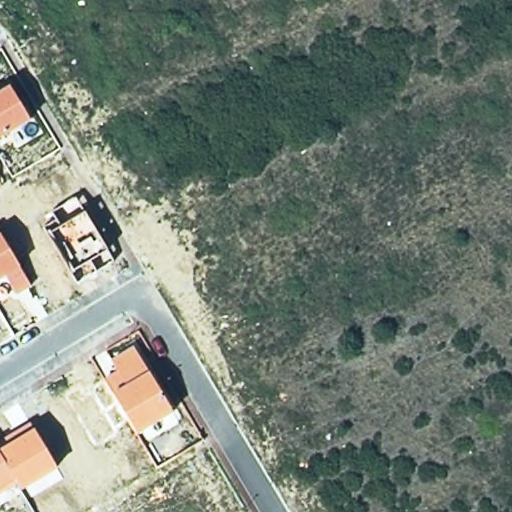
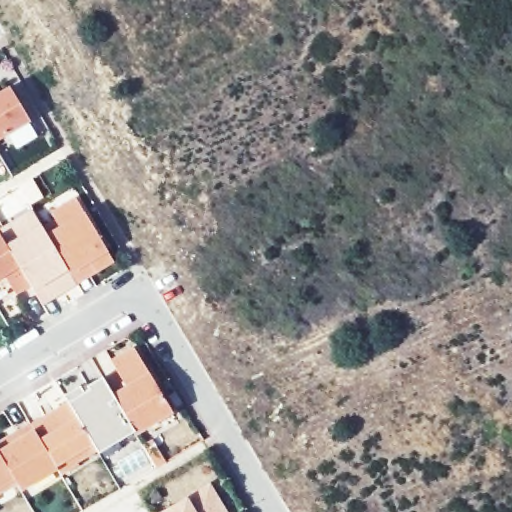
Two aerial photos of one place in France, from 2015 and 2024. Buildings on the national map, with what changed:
unchanged [(10,85),(30,122),(0,139),(0,91),(10,85)]
unchanged [(55,217),(52,211),(80,196),(117,261),(78,283),(41,226),(55,217)]
new [(42,304),(31,287),(7,242),(0,228),(30,210),(41,226),(78,283),(42,304)]
unchanged [(31,287),(16,294),(5,276),(0,279),(0,229),(31,287)]
unchanged [(136,435),(133,430),(104,378),(116,370),(110,359),(133,346),(173,413),(136,435)]
new [(96,451),(94,448),(92,445),(75,415),(67,401),(62,393),(80,382),(83,387),(101,375),(104,378),(133,430),(96,451)]
new [(67,401),(75,415),(92,445),(94,448),(56,470),(30,423),(67,401)]
unchanged [(16,485),(0,495),(0,447),(6,443),(3,438),(30,423),(56,470),(20,491),(16,485)]
new [(209,481),(227,512),(159,512),(186,495),(209,481)]

